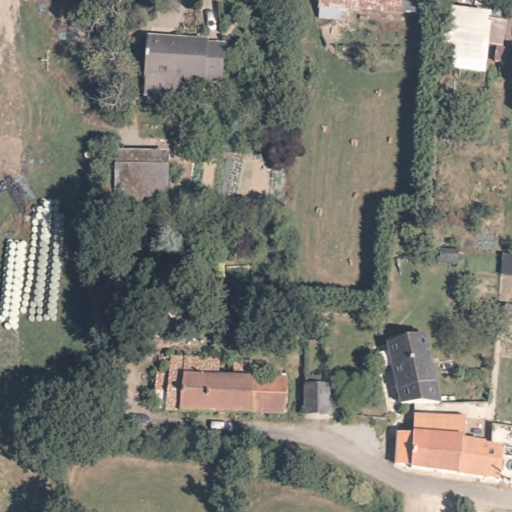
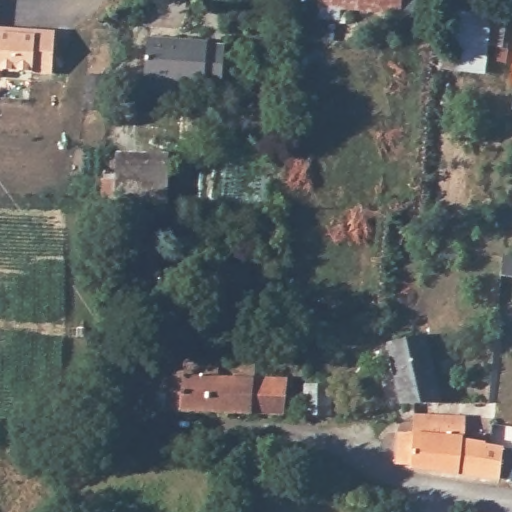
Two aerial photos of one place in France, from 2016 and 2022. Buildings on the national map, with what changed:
unchanged [(319,0),(416,0),(415,13),(318,5),(319,0)]
unchanged [(505,63),(495,62),(496,45),(481,43),(478,70),(478,72),(439,68),(443,19),(443,10),(484,14),(484,17),(483,21),(504,23),(501,46),(506,46),(505,63)]
new [(54,30),(51,75),(0,71),(0,26),(54,30)]
unchanged [(146,95),(146,81),(149,37),(210,40),(210,44),(227,44),(225,80),(205,79),(205,83),(183,81),(183,96),(146,95)]
unchanged [(512,86),(512,110),(510,109),(512,86)]
unchanged [(117,175),(117,161),(170,163),(169,202),(116,201),(116,194),(104,194),(106,174),(117,175)]
unchanged [(400,405),(385,344),(425,334),(440,401),(441,405),(414,404),(406,404),(400,405)]
unchanged [(166,408),(166,393),(155,392),(155,372),(167,373),(168,356),(219,359),(219,376),(236,376),(236,360),(258,361),(256,376),(255,410),(166,408)]
unchanged [(256,376),(290,377),(287,412),(255,410),(256,376)]
unchanged [(327,378),(330,412),(304,412),(303,378),(327,378)]
unchanged [(395,463),(397,431),(412,432),(414,412),(463,416),(462,437),(483,440),(483,443),(501,445),(500,456),(512,458),(512,478),(498,477),(395,463)]

